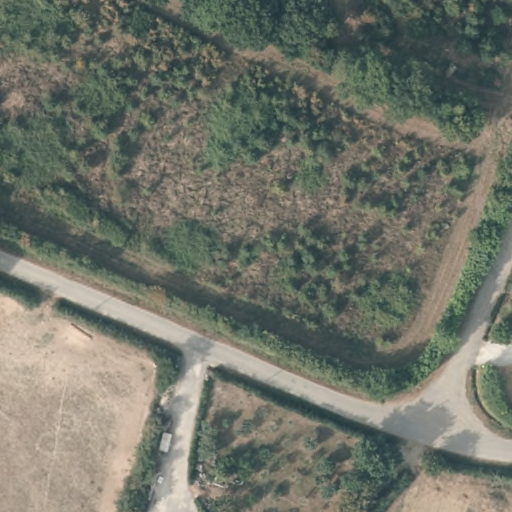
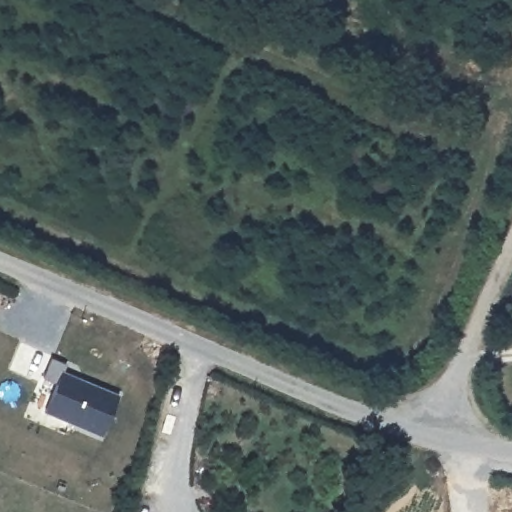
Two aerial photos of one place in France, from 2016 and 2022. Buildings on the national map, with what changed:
unchanged [(512,290),(512,295),(510,295),(512,290)]
new [(101,437),(44,413),(54,386),(41,379),(49,358),(65,365),(62,373),(118,396),(101,437)]

